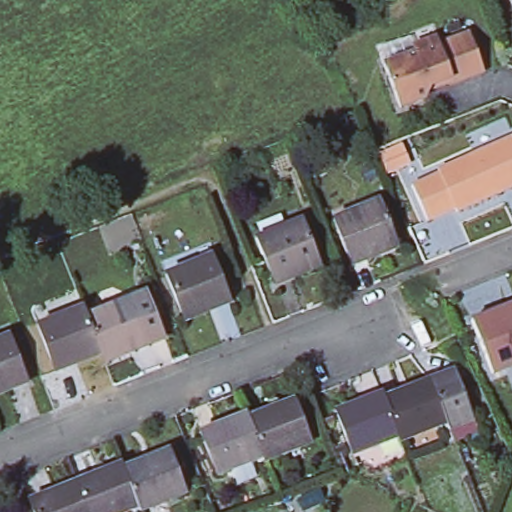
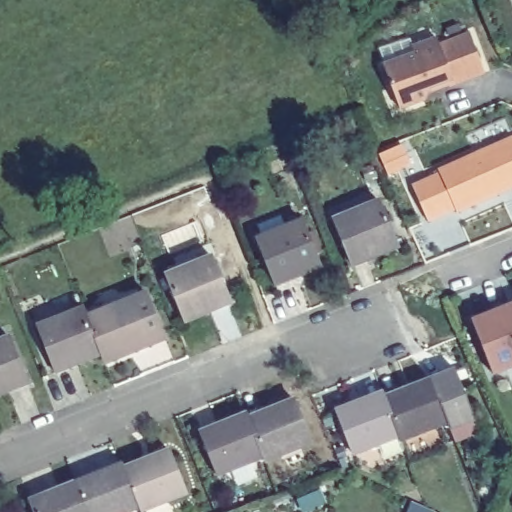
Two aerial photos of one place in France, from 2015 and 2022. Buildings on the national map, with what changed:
unchanged [(448,93),(446,88),(428,96),(423,107),(398,116),(382,73),(415,61),(411,55),(436,46),(438,53),(469,42),(482,80),(448,93)]
unchanged [(438,177),(512,144),(512,193),(506,191),(500,195),(500,199),(456,218),(455,214),(440,181),(438,177)]
unchanged [(427,226),(412,194),(440,181),(455,214),(427,226)]
unchanged [(400,246),(355,266),(335,221),(381,202),(400,246)]
unchanged [(325,269),(281,286),(262,238),(305,221),(325,269)]
unchanged [(232,305),(187,323),(168,276),(213,258),(232,305)]
unchanged [(88,317),(134,299),(148,293),(165,337),(150,342),(152,348),(107,364),(104,356),(88,317)]
unchanged [(488,374),(468,320),(498,309),(500,314),(512,309),(512,365),(488,374)]
unchanged [(57,374),(40,327),(85,310),(88,317),(104,356),(57,374)]
unchanged [(29,383),(0,394),(0,341),(10,337),(29,383)]
unchanged [(437,428),(420,386),(446,376),(466,424),(440,435),(437,428)]
unchanged [(392,446),(390,442),(375,404),(420,386),(437,428),(392,446)]
unchanged [(375,404),(390,442),(343,459),(328,416),(374,400),(375,404)]
unchanged [(294,401),(311,444),(266,461),(265,458),(250,419),(294,401)]
unchanged [(250,419),(265,458),(219,477),(202,434),(248,415),(250,419)]
unchanged [(141,509),(125,470),(173,452),(190,495),(146,512),(143,512),(141,509)]
unchanged [(78,484),(124,467),(125,470),(141,509),(134,512),(89,512),(78,484)]
unchanged [(32,502),(78,484),(89,512),(36,512),(32,502)]

